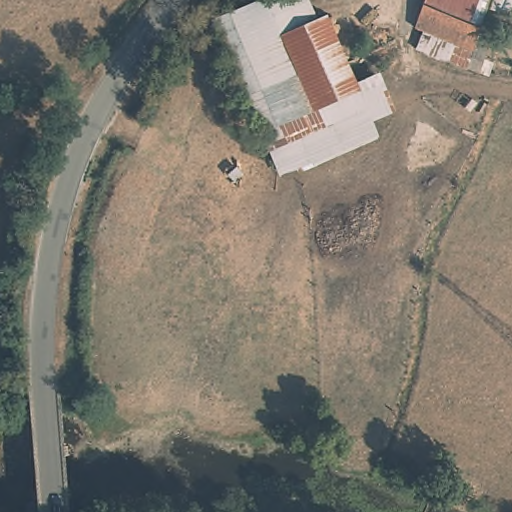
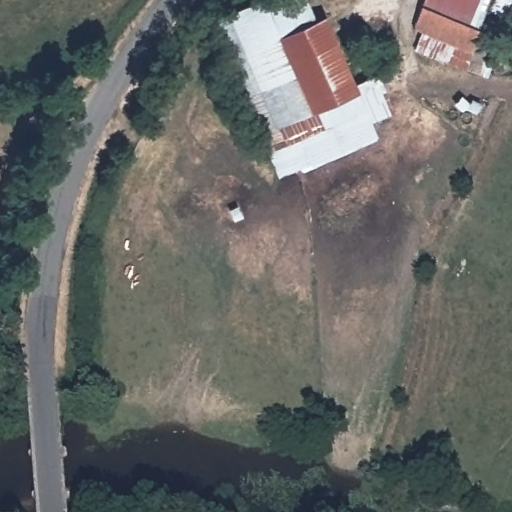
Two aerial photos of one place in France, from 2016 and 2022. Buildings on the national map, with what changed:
unchanged [(320,26),(331,21),(345,54),(364,46),(378,80),(359,88),(378,135),(281,175),(217,27),(278,0),(309,0),(320,26)]
unchanged [(337,3),(333,0),(346,0),(337,3)]
unchanged [(486,8),(472,51),(423,31),(414,28),(424,0),(512,0),(512,5),(509,17),(486,8)]
unchanged [(466,69),(415,49),(423,31),(472,51),(466,69)]

